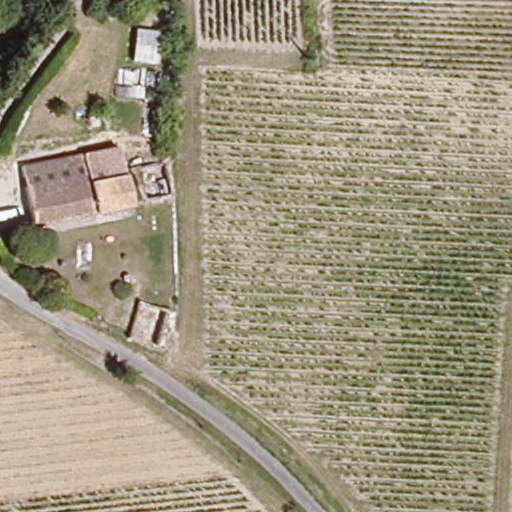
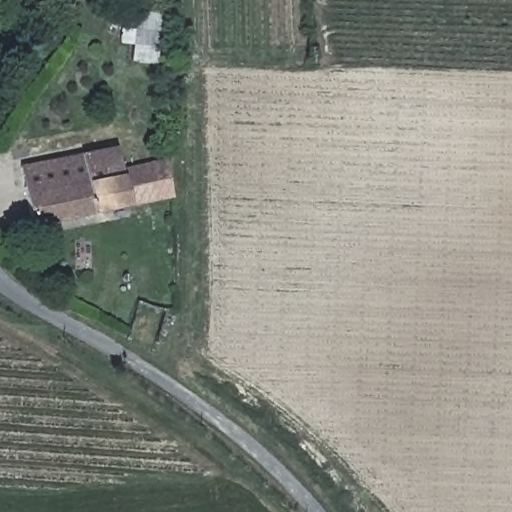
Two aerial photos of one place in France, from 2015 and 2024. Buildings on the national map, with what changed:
unchanged [(115,147),(119,168),(127,205),(92,210),(94,217),(29,229),(14,168),(115,147)]
new [(165,157),(173,197),(127,205),(119,168),(165,157)]

